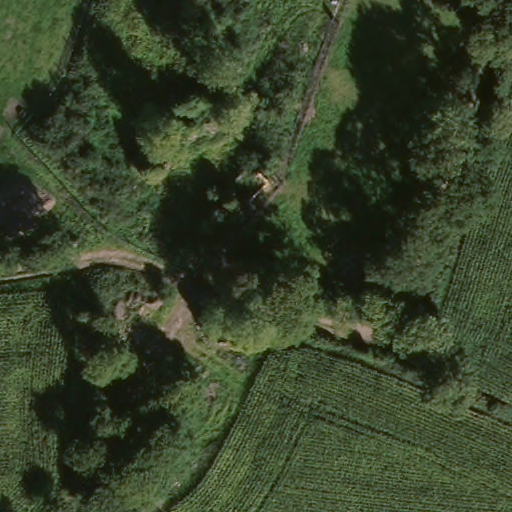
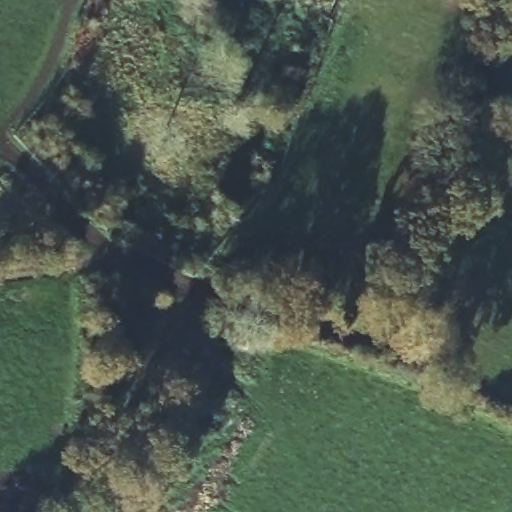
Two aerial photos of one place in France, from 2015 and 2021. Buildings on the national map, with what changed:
unchanged [(209,332),(220,302),(258,314),(246,343),(209,332)]

